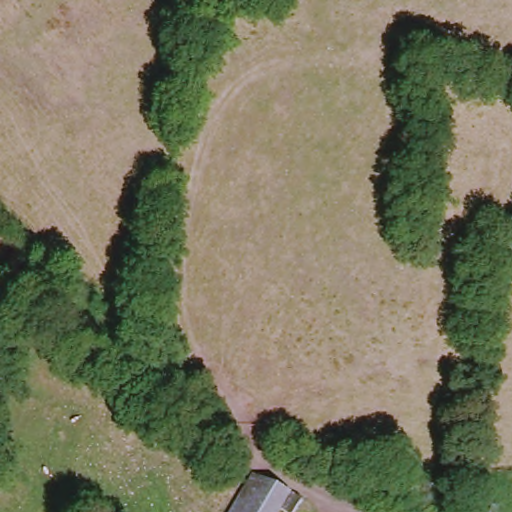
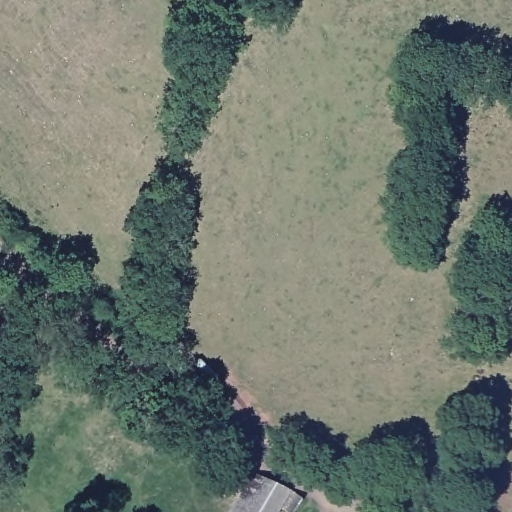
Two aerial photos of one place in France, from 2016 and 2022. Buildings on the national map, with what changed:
unchanged [(290,512),(276,512),(273,509),(271,512),(224,512),(246,475),(275,488),(297,501),(290,512)]

